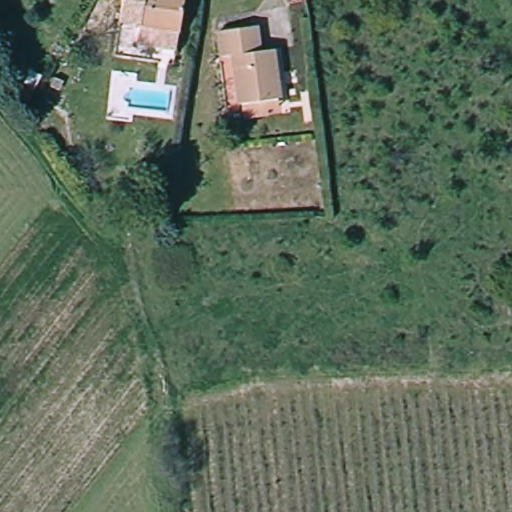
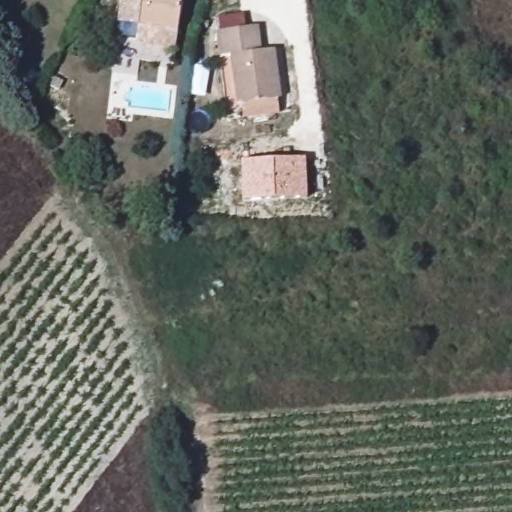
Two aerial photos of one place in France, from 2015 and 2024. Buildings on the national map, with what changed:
unchanged [(125,6),(126,0),(184,0),(178,30),(176,42),(139,35),(141,22),(143,10),(125,6)]
unchanged [(229,71),(226,29),(265,27),(268,68),(285,67),(288,94),(245,97),(243,71),(229,71)]
new [(308,197),(245,201),(243,160),(306,157),(308,197)]

